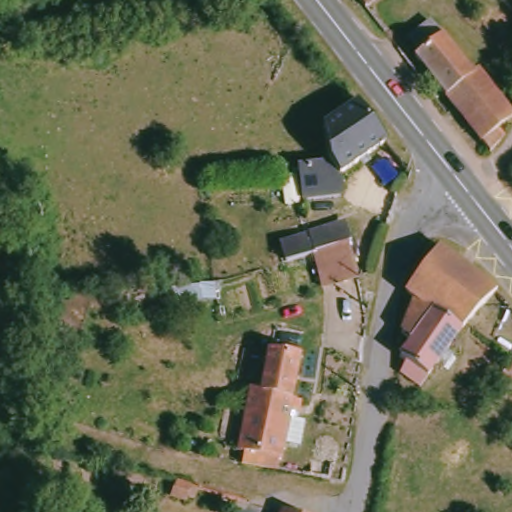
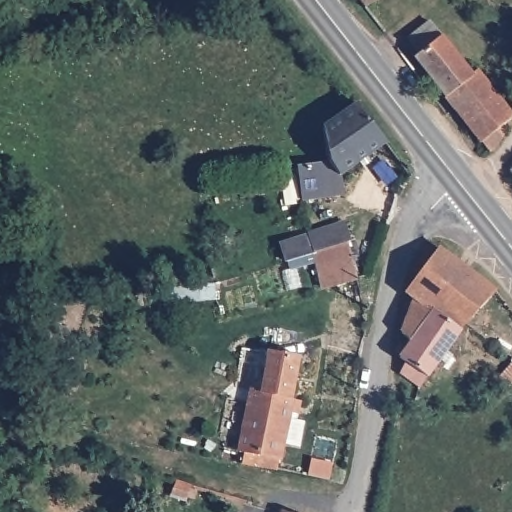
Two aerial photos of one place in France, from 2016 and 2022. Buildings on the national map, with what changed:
unchanged [(408,40),(415,35),(410,29),(428,14),(472,69),(478,65),(512,104),(491,145),(408,40)]
unchanged [(346,175),(347,185),(304,190),(300,166),(328,163),(323,130),(355,101),(386,140),(346,175)]
unchanged [(512,160),(512,175),(504,169),(512,160)]
unchanged [(310,229),(313,243),(329,238),(326,224),(345,219),(351,237),(357,278),(320,287),(312,252),(285,261),(281,237),(310,229)]
unchanged [(496,291),(461,325),(419,384),(402,374),(409,362),(397,352),(408,334),(399,327),(416,297),(404,287),(438,244),(496,291)]
unchanged [(170,284),(216,278),(217,296),(171,302),(170,284)]
unchanged [(73,288),(93,290),(84,334),(63,333),(73,288)]
unchanged [(255,452),(248,450),(260,382),(266,383),(272,346),(302,351),(283,465),(254,457),(255,452)]
unchanged [(508,406),(493,396),(508,375),(512,377),(512,400),(508,406)]
unchanged [(194,486),(187,506),(171,501),(175,487),(178,482),(194,486)]

